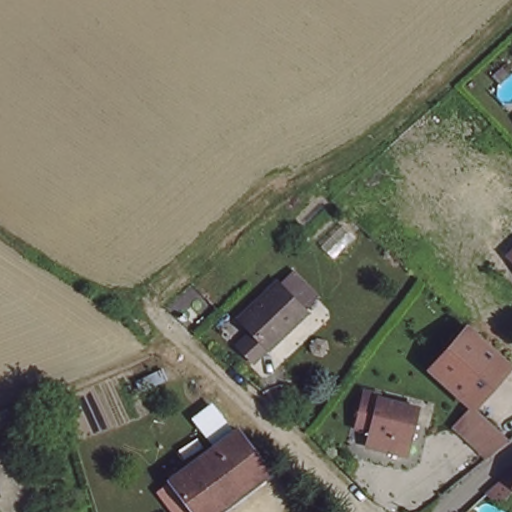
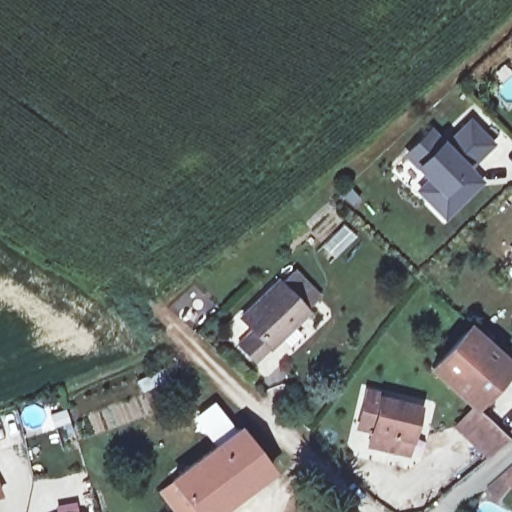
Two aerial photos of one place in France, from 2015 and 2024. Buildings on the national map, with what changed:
new [(470,169),(483,182),(443,222),(415,191),(426,179),(413,166),(402,155),(431,127),(445,141),(470,117),(495,144),(470,169)]
demolished [(467,220),(457,229),(442,213),(433,205),(446,194),(467,220)]
unchanged [(303,312),(268,350),(240,317),(275,283),(303,312)]
unchanged [(506,364),(469,405),(427,367),(465,328),(506,364)]
unchanged [(382,395),(380,401),(419,407),(415,426),(398,423),(390,452),(367,447),(371,425),(360,425),(367,392),(382,395)]
unchanged [(499,431),(503,434),(485,453),(453,427),(472,407),(499,431)]
unchanged [(219,512),(199,512),(172,482),(237,433),(268,475),(219,512)]
new [(172,482),(199,512),(172,512),(157,492),(172,482)]
unchanged [(512,485),(512,512),(502,512),(493,503),(512,485)]

